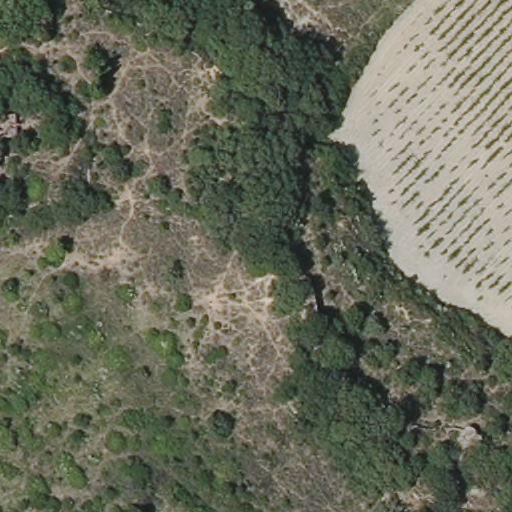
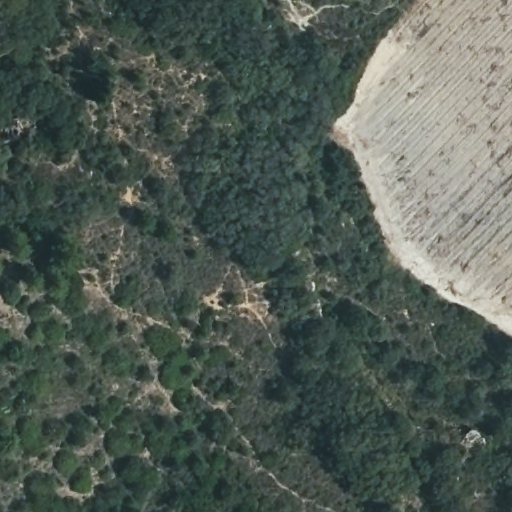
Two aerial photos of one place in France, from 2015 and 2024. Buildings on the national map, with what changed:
unchanged [(0,138),(0,116),(13,115),(14,136),(0,138)]

